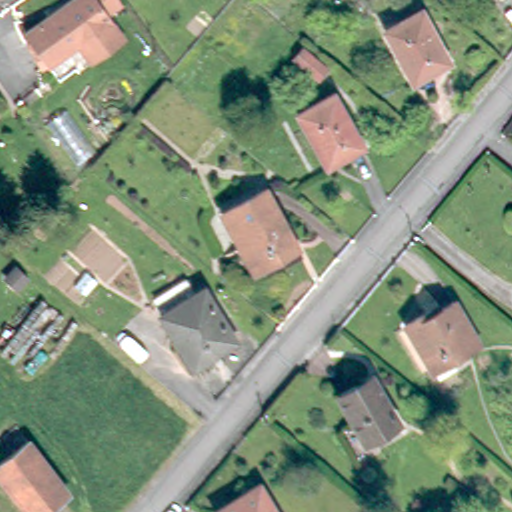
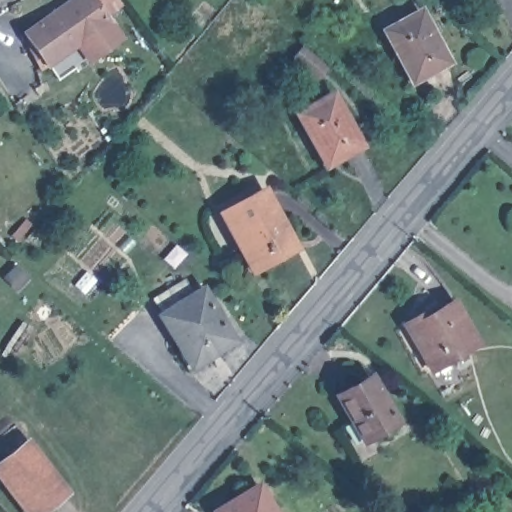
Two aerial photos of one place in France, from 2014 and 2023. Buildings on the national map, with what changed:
unchanged [(86,61),(74,44),(44,65),(21,32),(67,0),(117,0),(119,2),(102,14),(106,21),(118,39),(86,61)]
unchanged [(415,81),(393,27),(425,12),(448,67),(415,81)]
unchanged [(296,66),(307,52),(332,72),(320,84),(296,66)]
unchanged [(325,171),(298,122),(329,105),(356,154),(325,171)]
unchanged [(255,270),(241,249),(244,247),(222,214),(262,188),(298,242),(255,270)]
unchanged [(211,295),(239,346),(195,371),(167,320),(174,316),(165,300),(193,282),(203,299),(211,295)]
unchanged [(455,302),(478,342),(431,368),(405,322),(428,308),(432,315),(455,302)]
unchanged [(369,441),(341,395),(373,377),(400,422),(369,441)]
unchanged [(32,512),(0,470),(0,460),(28,439),(67,490),(38,512),(32,512)]
unchanged [(277,512),(219,512),(216,506),(262,482),(277,512)]

